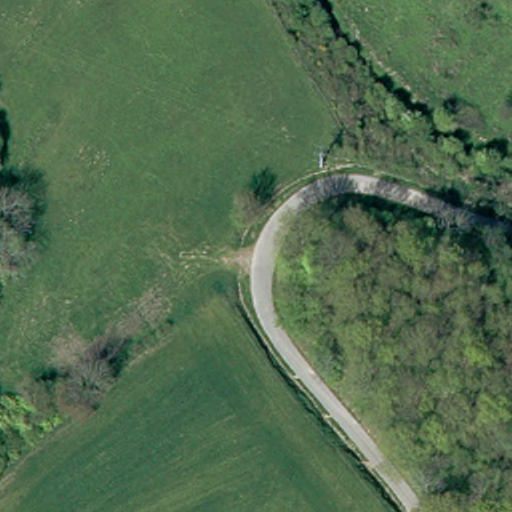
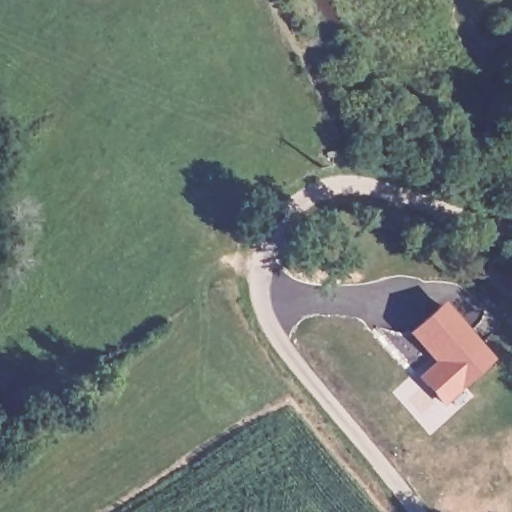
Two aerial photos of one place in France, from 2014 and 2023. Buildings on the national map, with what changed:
new [(484,356),(441,400),(422,380),(436,366),(409,336),(436,307),(484,356)]

